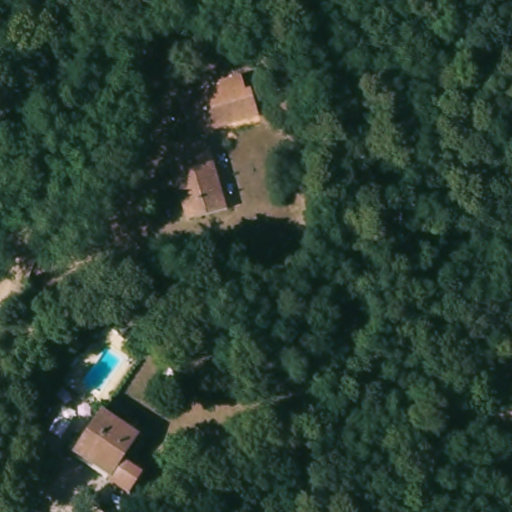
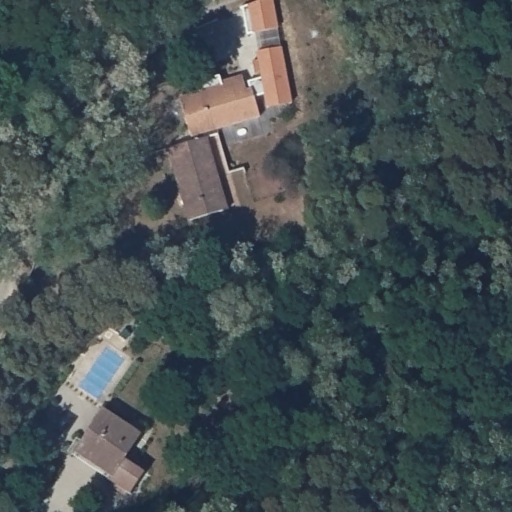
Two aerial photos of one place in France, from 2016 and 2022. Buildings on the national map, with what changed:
new [(249,4),(262,0),(273,0),(292,103),(268,107),(261,72),(249,4)]
unchanged [(237,75),(241,89),(246,87),(254,116),(185,134),(175,95),(195,89),(217,84),(216,80),(237,75)]
unchanged [(160,147),(201,136),(221,207),(181,219),(177,204),(170,181),(160,147)]
unchanged [(136,438),(118,463),(139,477),(125,498),(104,483),(108,476),(74,452),(101,415),(136,438)]

